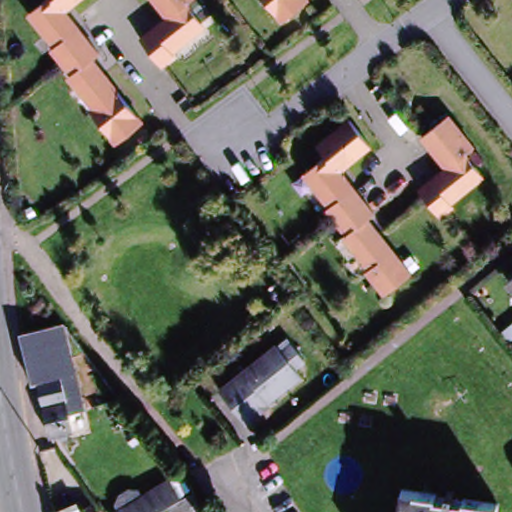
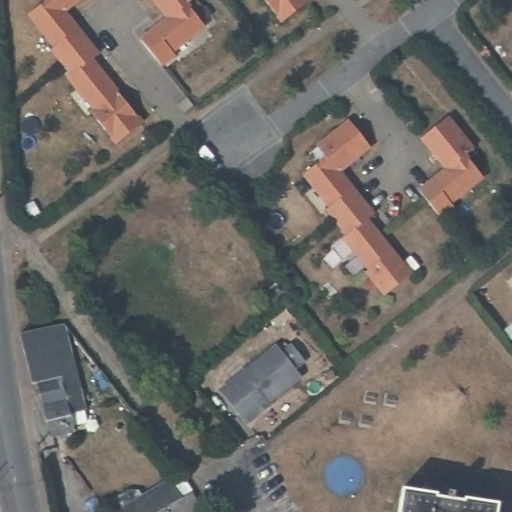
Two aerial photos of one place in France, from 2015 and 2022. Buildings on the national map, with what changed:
unchanged [(57,49),(59,47),(33,15),(38,11),(52,0),(83,0),(70,11),(84,27),(107,57),(102,62),(151,123),(124,145),(97,112),(98,110),(72,79),(77,74),(57,49)]
unchanged [(170,66),(147,38),(175,16),(162,0),(202,0),(196,5),(210,23),(216,29),(183,55),(170,66)]
unchanged [(288,24),(271,0),(313,0),(316,2),(288,24)]
unchanged [(457,203),(459,206),(446,217),(425,191),(452,169),(427,137),(453,117),(478,147),(471,153),(486,173),(489,177),(457,203)]
unchanged [(313,170),(332,155),(322,142),(353,118),(376,146),(345,171),(368,200),(343,221),(332,208),(335,205),(309,173),(313,170)]
unchanged [(352,233),(343,221),(368,200),(380,214),(372,219),(416,273),(391,294),(372,270),(374,268),(348,236),(352,233)]
unchanged [(512,278),(512,293),(505,284),(512,278)]
unchanged [(12,335),(57,326),(78,412),(62,416),(67,434),(43,439),(29,384),(25,385),(12,336),(12,335)]
unchanged [(273,345),(278,352),(288,344),(301,360),(291,368),(297,375),(240,421),(216,391),(273,345)]
unchanged [(155,486),(167,506),(158,512),(110,512),(155,486)]
unchanged [(396,491),(414,493),(429,495),(428,499),(440,500),(441,493),(447,494),(446,501),(458,503),(458,501),(491,505),(490,512),(392,512),(396,491)]
unchanged [(185,501),(191,512),(166,512),(185,501)]

